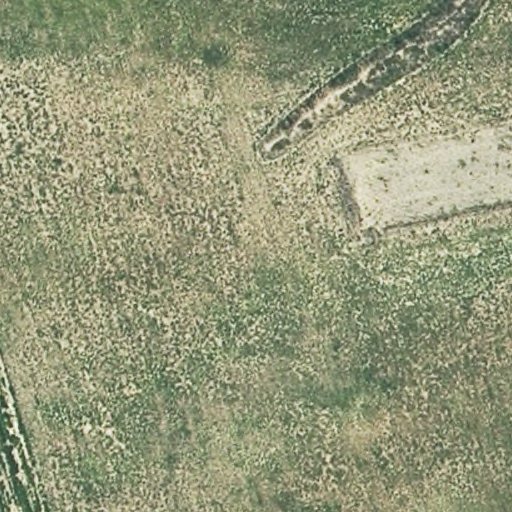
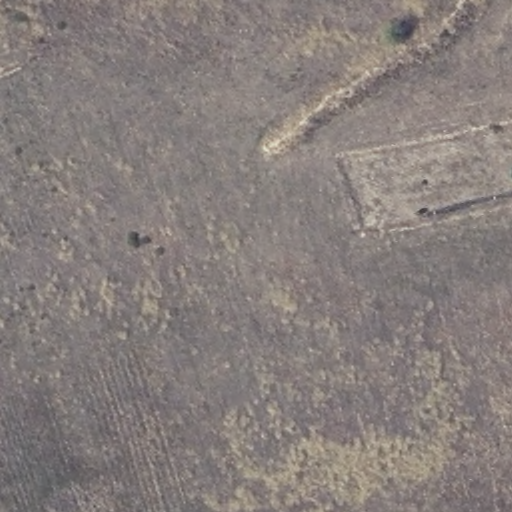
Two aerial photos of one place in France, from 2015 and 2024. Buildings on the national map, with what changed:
[]

